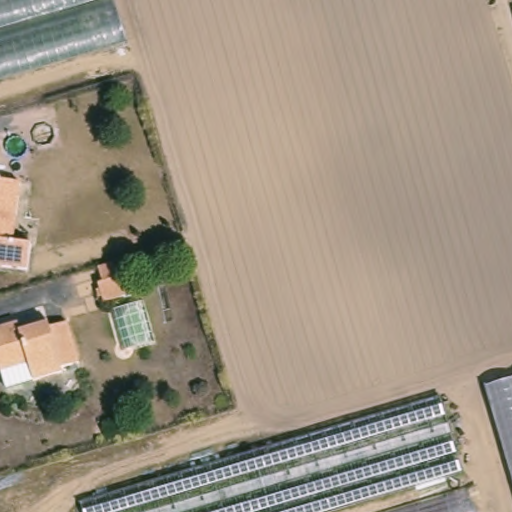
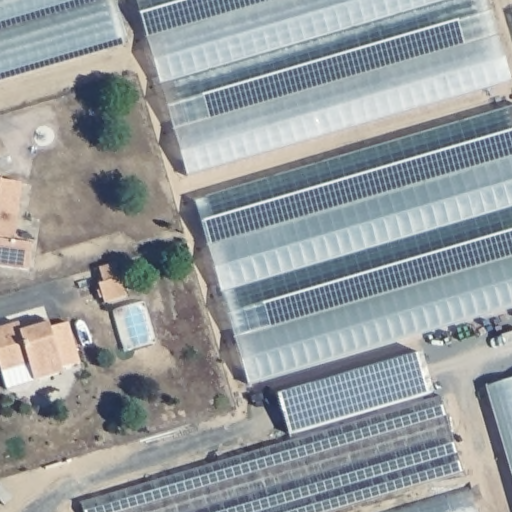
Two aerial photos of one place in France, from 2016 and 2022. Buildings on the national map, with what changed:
unchanged [(114,0),(127,45),(0,83),(0,0),(114,0)]
new [(487,0),(510,81),(187,175),(135,0),(487,0)]
new [(512,106),(512,306),(248,384),(194,199),(512,106)]
unchanged [(6,162),(0,164),(0,144),(6,162)]
unchanged [(21,185),(11,242),(28,245),(23,275),(0,271),(0,182),(21,185)]
unchanged [(132,302),(108,307),(104,291),(101,278),(119,273),(121,286),(126,285),(132,302)]
demolished [(119,316),(125,332),(101,338),(97,321),(114,317),(119,316)]
unchanged [(54,326),(56,331),(75,325),(87,367),(69,372),(71,381),(57,384),(28,333),(54,326)]
unchanged [(38,389),(30,367),(1,376),(0,374),(0,335),(25,328),(28,333),(57,384),(38,389)]
new [(278,396),(414,355),(426,393),(290,434),(278,396)]
unchanged [(512,381),(512,475),(487,389),(512,381)]
unchanged [(439,397),(461,473),(330,512),(81,512),(79,504),(439,397)]
unchanged [(470,492),(477,512),(400,512),(470,492)]

